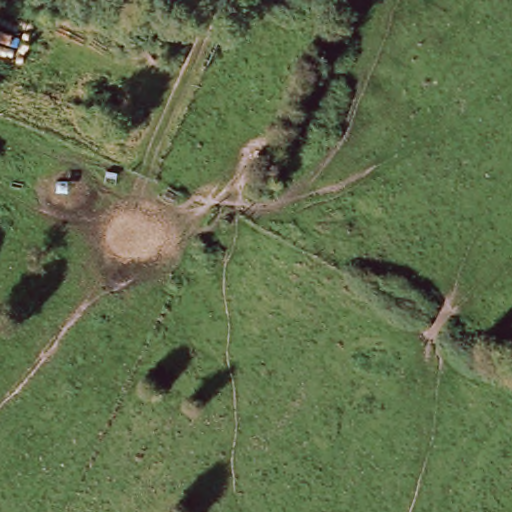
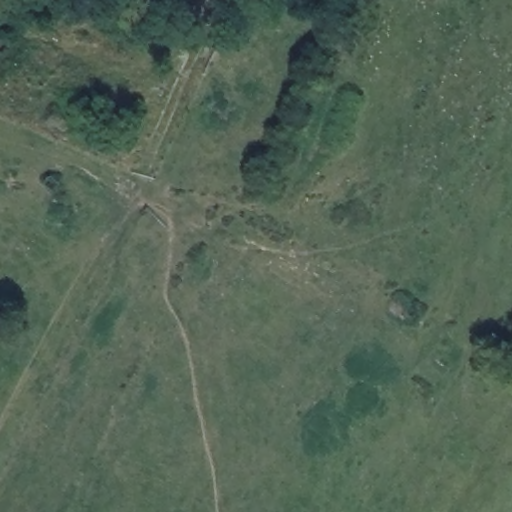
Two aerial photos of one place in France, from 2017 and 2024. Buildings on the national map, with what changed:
[]

